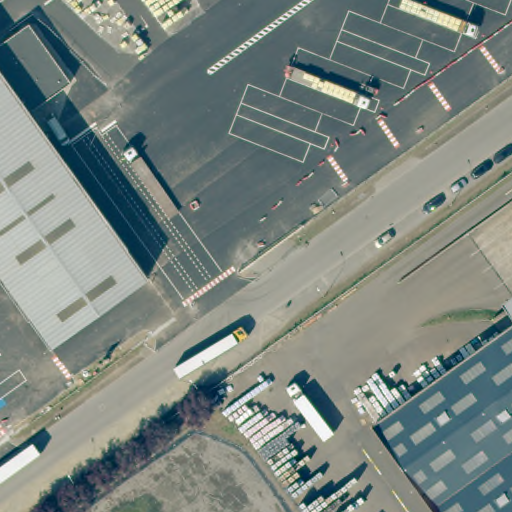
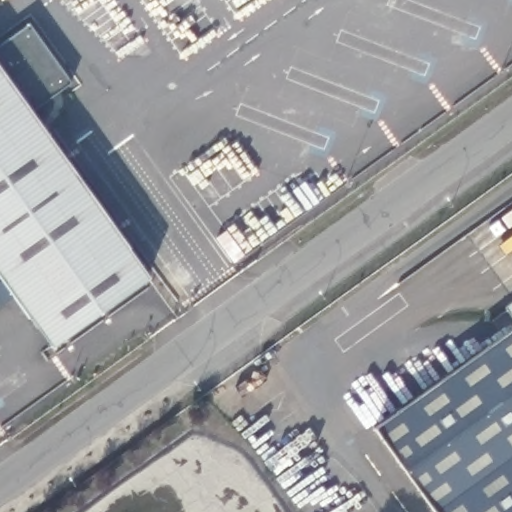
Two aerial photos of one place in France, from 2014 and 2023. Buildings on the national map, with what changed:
unchanged [(51,346),(0,275),(0,68),(149,277),(51,346)]
unchanged [(505,312),(512,307),(512,322),(505,312)]
unchanged [(434,512),(375,430),(393,417),(371,386),(395,370),(416,400),(512,330),(512,512),(434,512)]

